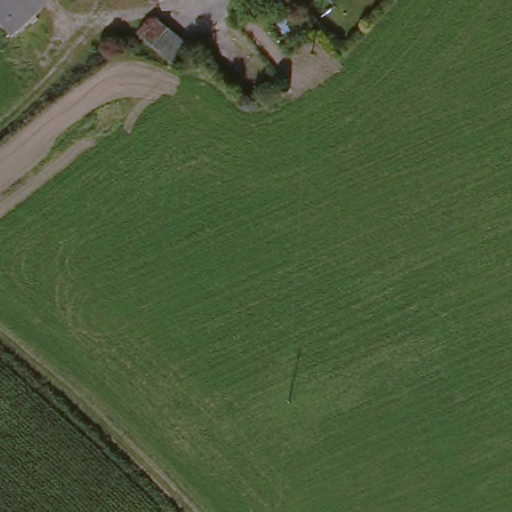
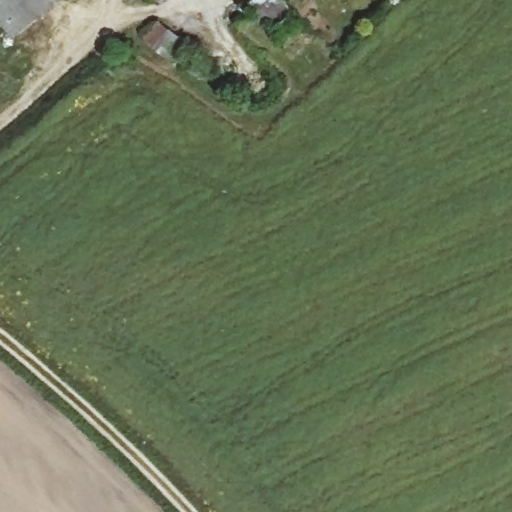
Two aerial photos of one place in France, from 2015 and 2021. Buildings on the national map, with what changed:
unchanged [(0,36),(0,0),(58,0),(6,44),(0,36)]
unchanged [(149,0),(160,0),(153,5),(149,0)]
unchanged [(255,0),(287,0),(292,9),(265,27),(252,2),(255,0)]
unchanged [(303,27),(280,43),(274,32),(295,17),(303,27)]
unchanged [(185,54),(169,71),(139,42),(155,26),(185,54)]

